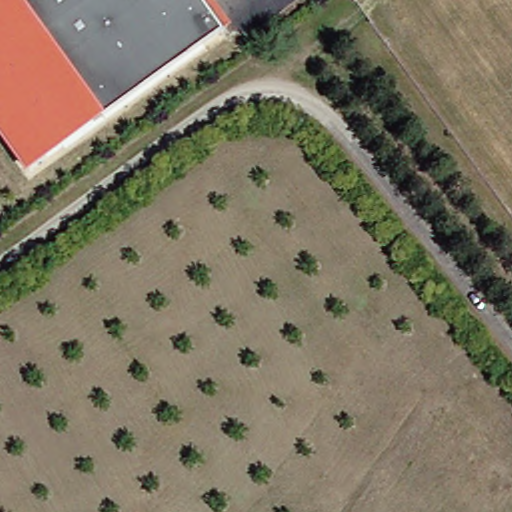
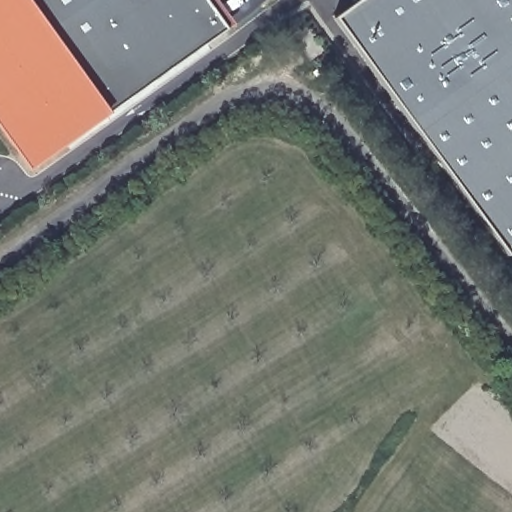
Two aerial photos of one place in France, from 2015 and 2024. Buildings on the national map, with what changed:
unchanged [(229,27),(34,167),(0,121),(0,0),(209,0),(229,27)]
new [(506,257),(333,19),(358,0),(512,0),(512,253),(506,257)]

